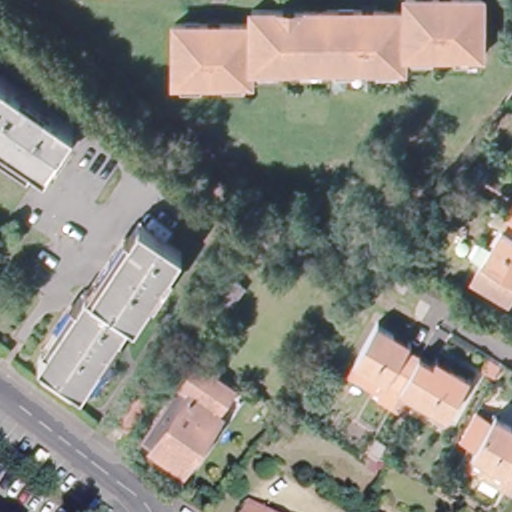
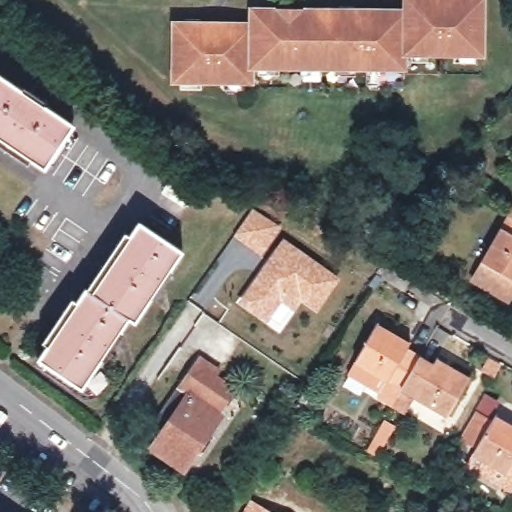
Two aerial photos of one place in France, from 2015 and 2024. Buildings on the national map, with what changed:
unchanged [(255,10),(407,10),(407,0),(483,0),(483,48),(407,48),(407,68),(254,68),(254,83),(176,82),(176,25),(212,25),(255,25),(255,10)]
unchanged [(0,73),(72,121),(46,164),(0,134),(0,73)]
unchanged [(510,209),(512,205),(512,211),(510,209)]
new [(252,207),(281,227),(262,255),(233,234),(252,207)]
unchanged [(507,300),(469,279),(510,209),(512,211),(512,291),(507,300)]
unchanged [(86,288),(90,291),(138,218),(179,248),(130,319),(125,317),(110,339),(114,343),(105,355),(101,353),(79,385),(40,356),(86,288)]
new [(283,236),(340,278),(316,312),(302,301),(293,311),(282,302),(266,322),(237,300),(283,236)]
demolished [(322,258),(312,273),(282,254),(292,239),(322,258)]
unchanged [(386,263),(407,275),(399,289),(377,276),(386,263)]
demolished [(245,289),(217,327),(192,309),(219,271),(245,289)]
unchanged [(372,330),(392,341),(406,349),(401,358),(412,365),(396,394),(350,368),(372,330)]
unchanged [(215,366),(212,370),(222,378),(213,393),(225,401),(205,430),(214,437),(202,452),(195,446),(182,465),(143,437),(201,355),(215,366)]
unchanged [(427,374),(433,364),(447,372),(463,382),(441,420),(396,394),(412,365),(427,374)]
demolished [(146,407),(128,432),(112,420),(129,396),(146,407)]
unchanged [(470,459),(492,422),(509,432),(512,434),(512,484),(470,459)]
unchanged [(273,512),(247,512),(254,501),(273,512)]

